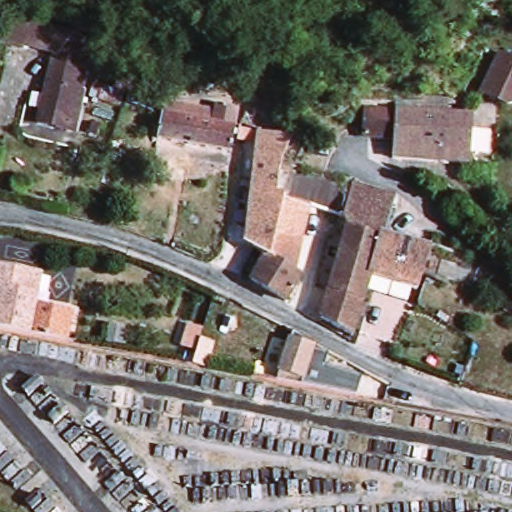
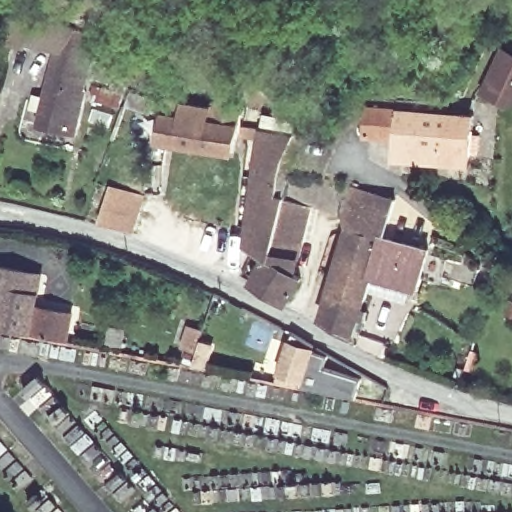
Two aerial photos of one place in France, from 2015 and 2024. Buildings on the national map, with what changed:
unchanged [(87,51),(91,52),(82,90),(85,91),(76,135),(36,125),(52,53),(24,46),(23,49),(0,45),(0,42),(6,17),(90,38),(87,51)]
unchanged [(508,103),(480,91),(498,49),(512,55),(512,102),(508,103)]
unchanged [(119,109),(89,100),(93,85),(123,94),(119,109)]
unchanged [(232,156),(160,144),(162,122),(174,123),(176,109),(215,116),(216,109),(239,113),(235,130),(237,130),(232,156)]
unchanged [(473,120),(470,168),(393,163),(395,142),(365,140),(366,113),(473,120)]
unchanged [(300,283),(302,283),(287,307),(252,285),(266,260),(247,248),(260,144),(241,141),(242,131),(260,134),(295,138),(290,149),(283,163),(278,200),(285,202),(279,229),(310,237),(305,259),(300,283)]
new [(111,184),(146,195),(135,234),(99,223),(111,184)]
unchanged [(418,294),(399,289),(373,280),(356,334),(353,342),(322,324),(349,232),(345,221),(353,192),(395,204),(391,222),(386,239),(430,253),(418,294)]
unchanged [(62,340),(25,333),(0,329),(0,267),(20,270),(35,273),(31,292),(30,304),(67,311),(62,340)]
unchanged [(315,349),(305,378),(281,370),(291,340),(315,349)]

